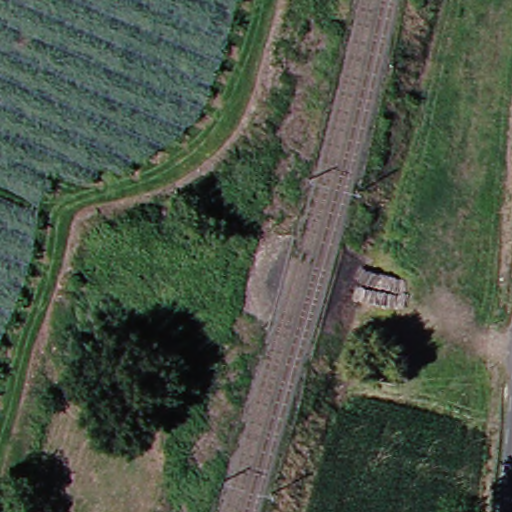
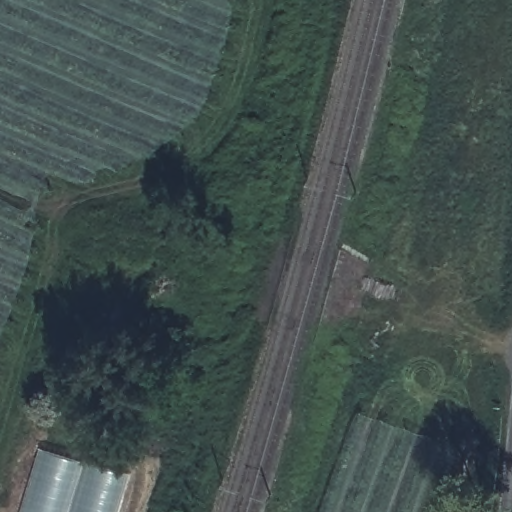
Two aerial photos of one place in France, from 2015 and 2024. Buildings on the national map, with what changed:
new [(41,448),(128,475),(117,512),(22,512),(41,448)]

